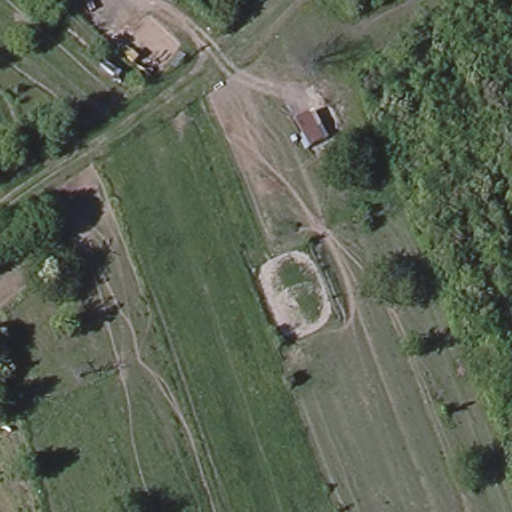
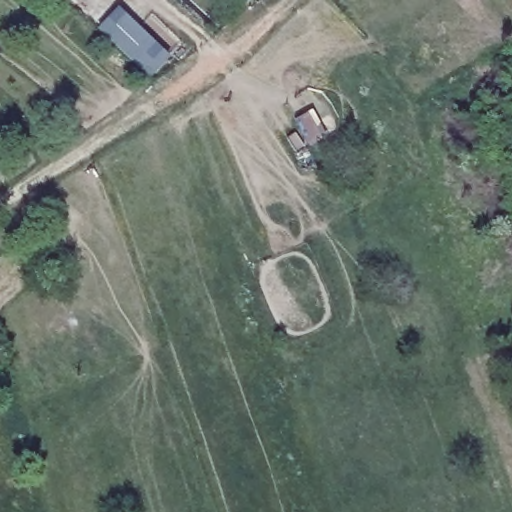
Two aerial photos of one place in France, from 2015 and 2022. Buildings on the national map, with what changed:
new [(171,55),(149,78),(96,28),(118,6),(171,55)]

